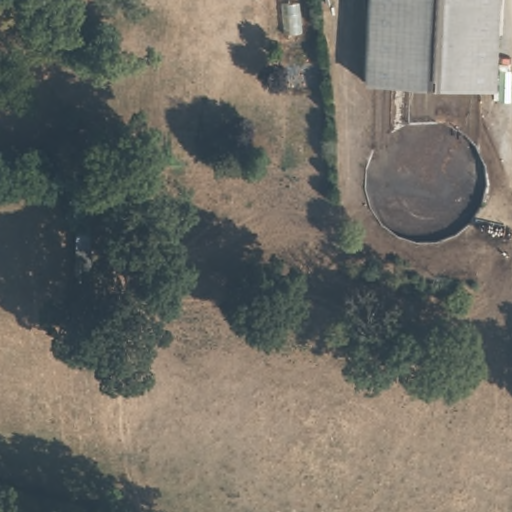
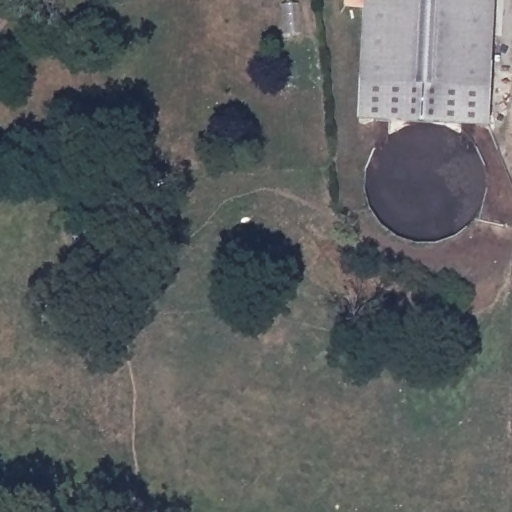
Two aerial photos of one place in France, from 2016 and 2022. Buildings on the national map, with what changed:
unchanged [(492,126),(362,121),(368,0),(497,0),(492,126)]

